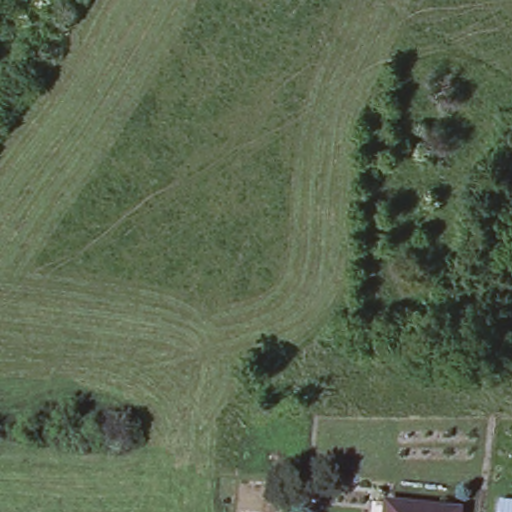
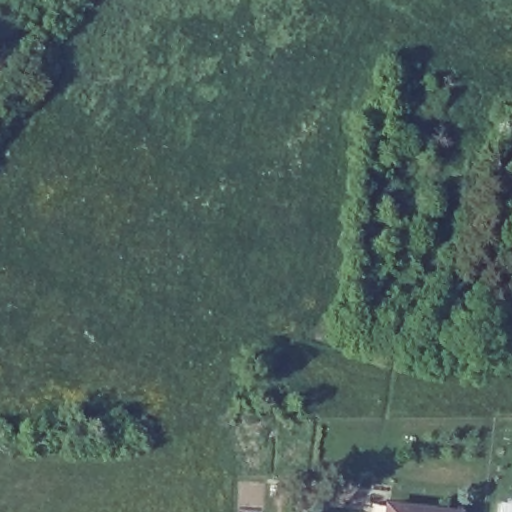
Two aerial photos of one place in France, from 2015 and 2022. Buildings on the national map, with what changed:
unchanged [(458,512),(386,512),(386,504),(458,512)]

